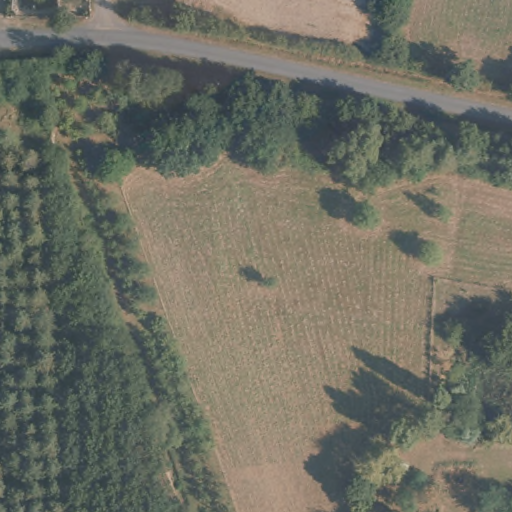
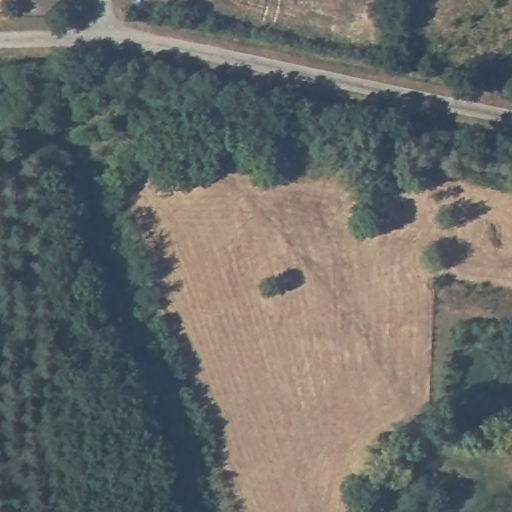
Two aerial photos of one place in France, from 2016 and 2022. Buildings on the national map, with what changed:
[]

